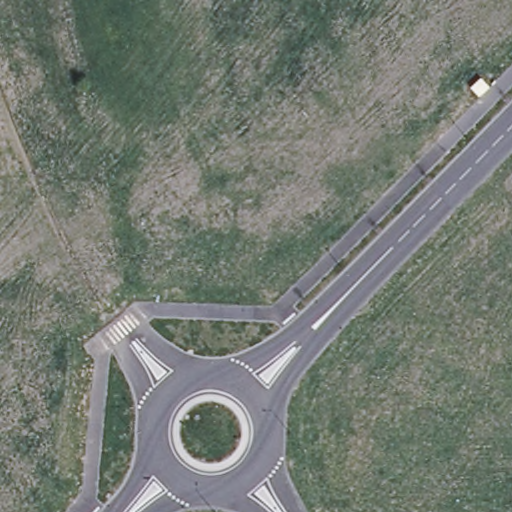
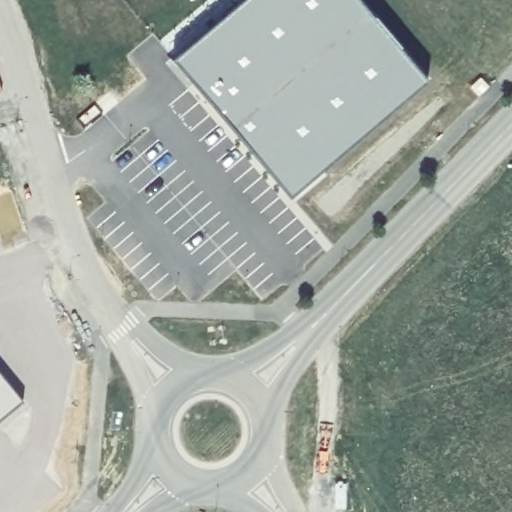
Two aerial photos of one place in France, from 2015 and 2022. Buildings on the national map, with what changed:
new [(284,189),(192,82),(185,87),(165,64),(172,58),(172,57),(240,0),(362,0),(429,78),(305,183),(290,196),(284,189)]
new [(0,423),(0,374),(24,403),(0,423)]

